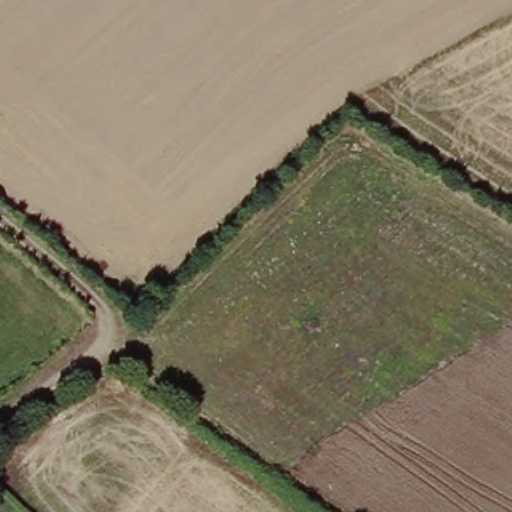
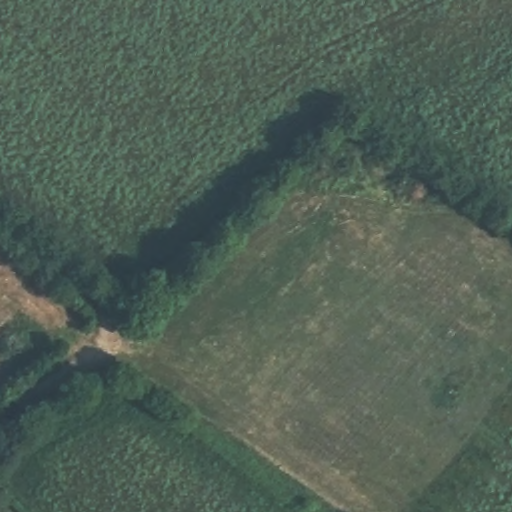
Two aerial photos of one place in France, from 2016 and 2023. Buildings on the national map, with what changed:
[]

